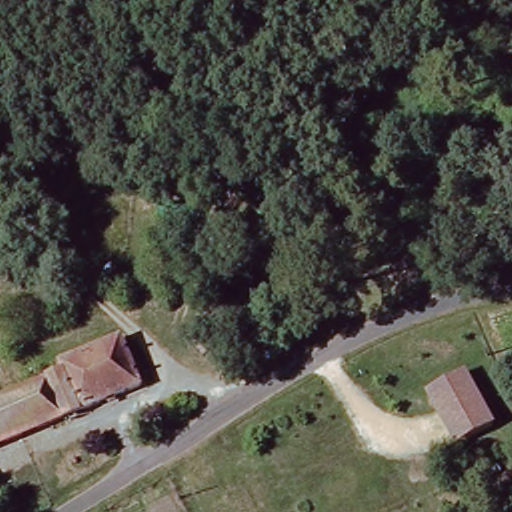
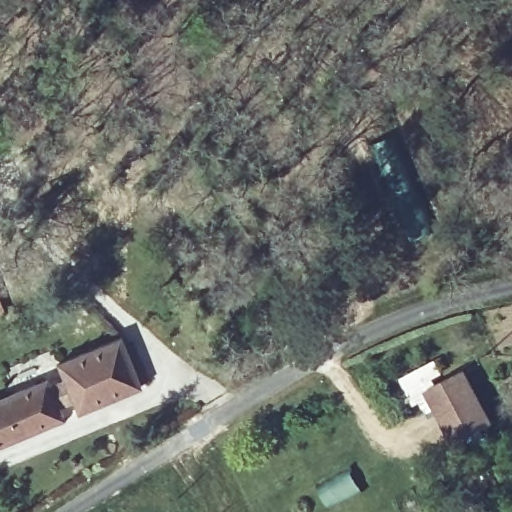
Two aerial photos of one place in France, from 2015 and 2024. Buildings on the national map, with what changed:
unchanged [(119,342),(140,389),(0,449),(0,403),(62,377),(58,368),(119,342)]
unchanged [(426,391),(466,369),(495,424),(454,446),(426,391)]

